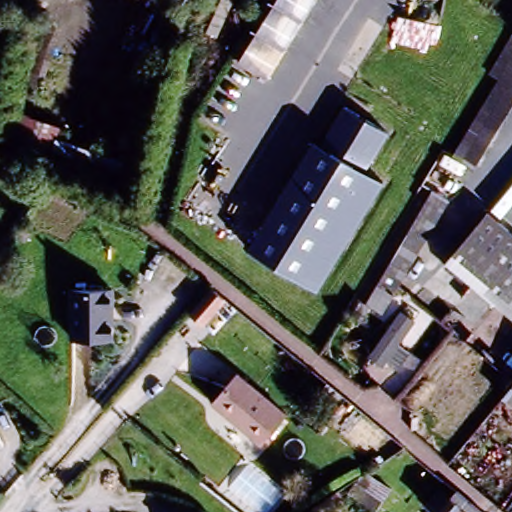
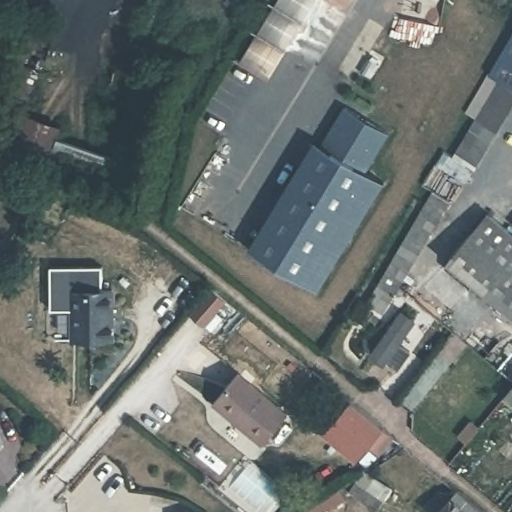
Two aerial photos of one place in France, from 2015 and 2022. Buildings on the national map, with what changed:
unchanged [(53,27),(32,101),(1,93),(22,22),(53,27)]
unchanged [(465,170),(386,297),(373,288),(457,151),(512,60),(512,103),(469,172),(465,170)]
unchanged [(385,135),(363,172),(379,182),(315,290),(241,246),(305,139),(317,147),(343,107),(385,135)]
unchanged [(12,114),(62,132),(57,143),(142,168),(129,200),(0,152),(0,150),(12,114)]
unchanged [(488,214),(512,235),(512,320),(447,263),(488,214)]
new [(51,311),(52,272),(101,270),(99,292),(67,292),(67,311),(51,311)]
unchanged [(112,292),(112,341),(67,340),(67,292),(112,292)]
unchanged [(420,322),(405,345),(413,352),(393,374),(371,360),(401,311),(420,322)]
unchanged [(288,415),(262,445),(210,402),(235,372),(288,415)]
unchanged [(512,381),(512,409),(498,397),(512,381)]
new [(347,401),(379,427),(352,460),(321,433),(347,401)]
unchanged [(2,449),(0,450),(0,446),(2,449)]
unchanged [(464,512),(433,512),(447,497),(464,512)]
demolished [(319,512),(316,512),(318,511),(319,512)]

